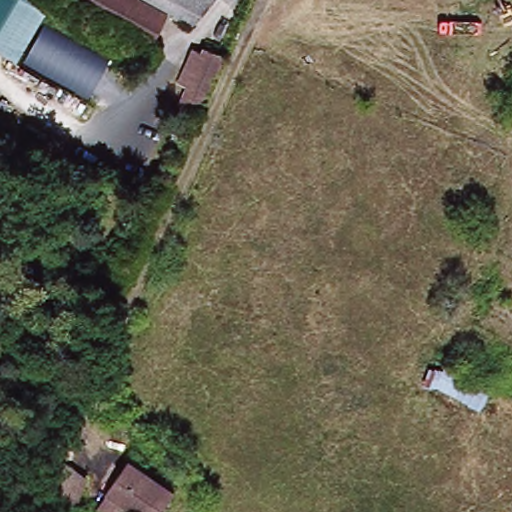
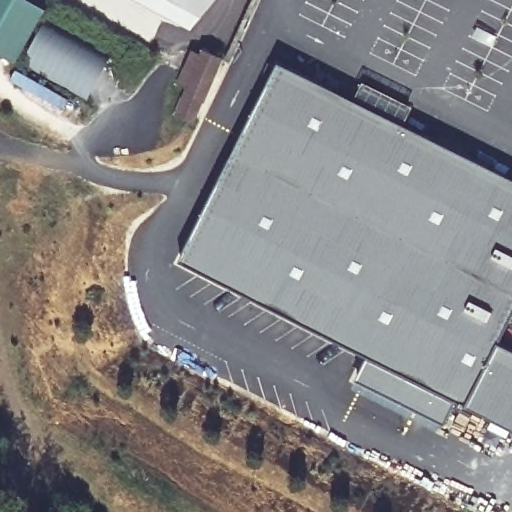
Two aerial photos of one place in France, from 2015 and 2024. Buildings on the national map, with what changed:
unchanged [(50,8),(18,60),(0,51),(0,0),(34,0),(50,8)]
unchanged [(199,28),(174,13),(157,47),(68,0),(221,0),(199,28)]
new [(87,101),(22,64),(45,22),(110,57),(87,101)]
unchanged [(225,54),(205,98),(188,90),(190,85),(181,81),(196,48),(205,52),(208,46),(225,54)]
new [(365,358),(178,262),(281,62),(512,181),(512,316),(465,409),(455,404),(365,358)]
new [(498,345),(512,353),(512,434),(465,409),(498,345)]
new [(352,385),(365,358),(455,404),(443,430),(352,385)]
demolished [(479,408),(445,389),(430,387),(435,368),(449,370),(454,363),(490,383),(479,408)]
demolished [(181,492),(167,512),(144,512),(135,505),(114,492),(135,461),(181,492)]
demolished [(59,493),(68,465),(87,478),(78,506),(59,493)]

